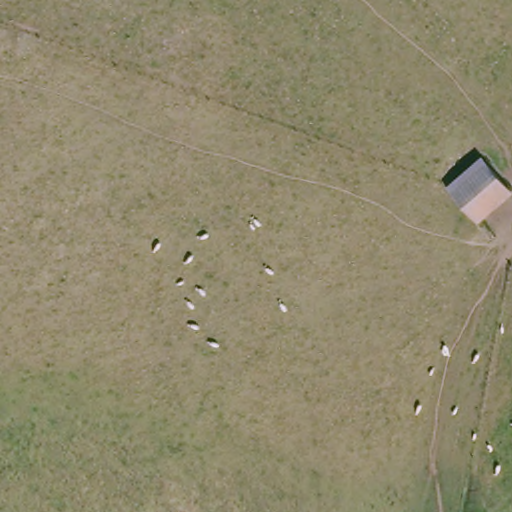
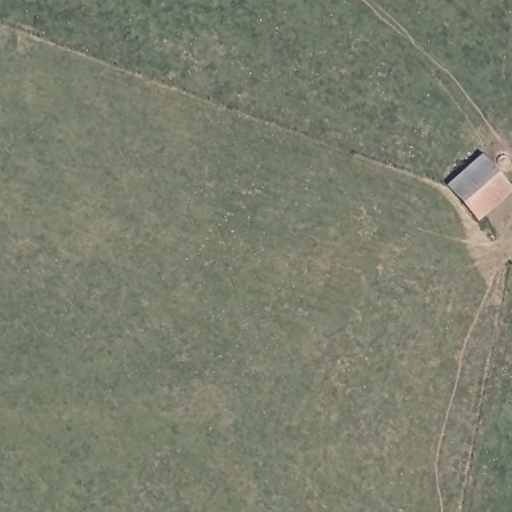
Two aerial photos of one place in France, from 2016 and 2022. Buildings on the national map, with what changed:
unchanged [(447,185),(480,155),(511,190),(478,220),(447,185)]

